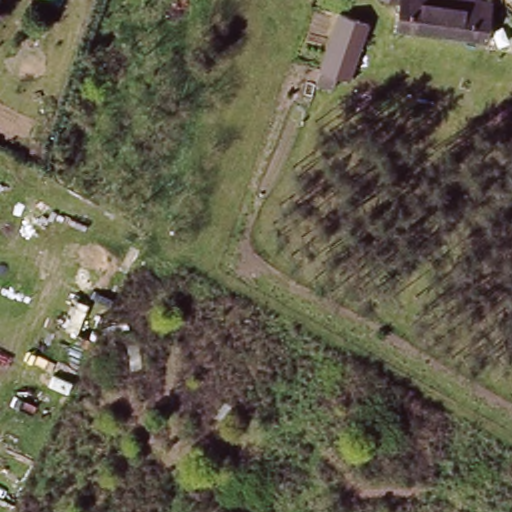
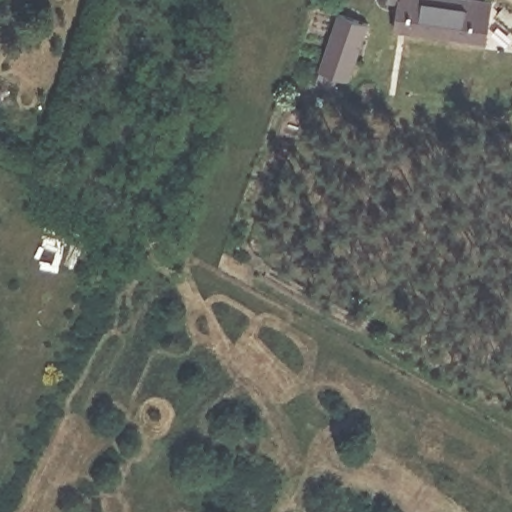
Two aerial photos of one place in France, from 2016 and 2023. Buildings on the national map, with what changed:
unchanged [(480,35),(399,17),(403,0),(493,0),(486,37),(480,35)]
unchanged [(369,22),(346,87),(315,77),(337,11),(369,22)]

